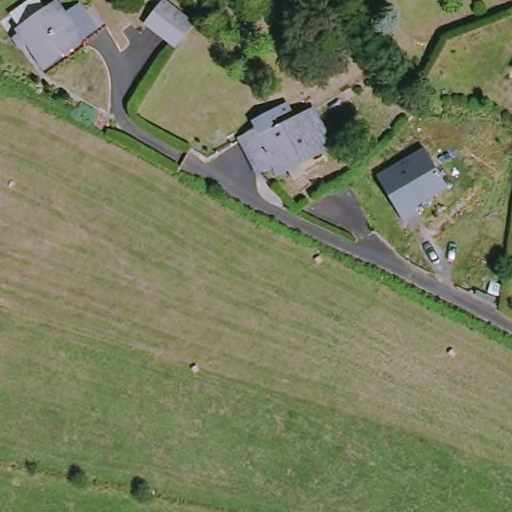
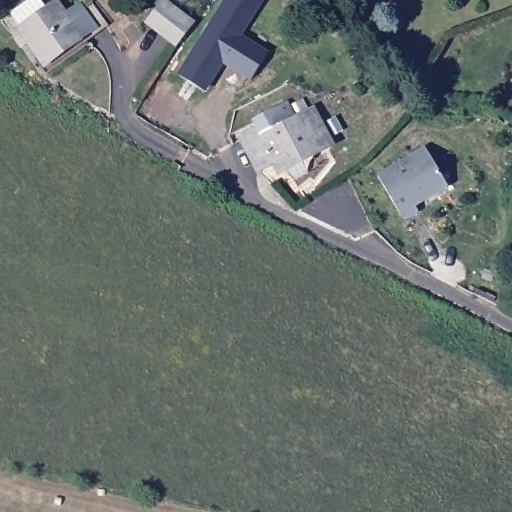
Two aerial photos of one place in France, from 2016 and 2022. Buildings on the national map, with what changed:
unchanged [(48,64),(28,35),(26,36),(20,28),(26,24),(25,18),(55,0),(65,0),(83,29),(88,39),(48,64)]
new [(163,0),(167,0),(194,22),(176,49),(144,24),(163,0)]
new [(178,75),(224,0),(265,0),(243,37),(268,53),(251,82),(224,65),(206,93),(178,75)]
unchanged [(298,118),(316,108),(339,146),(279,180),(274,169),(259,177),(238,139),(256,131),(252,123),(289,103),(298,118)]
unchanged [(453,191),(420,211),(422,214),(406,222),(378,177),(426,150),(453,191)]

